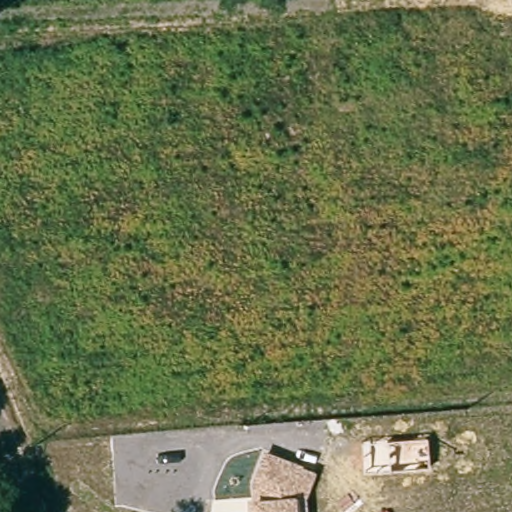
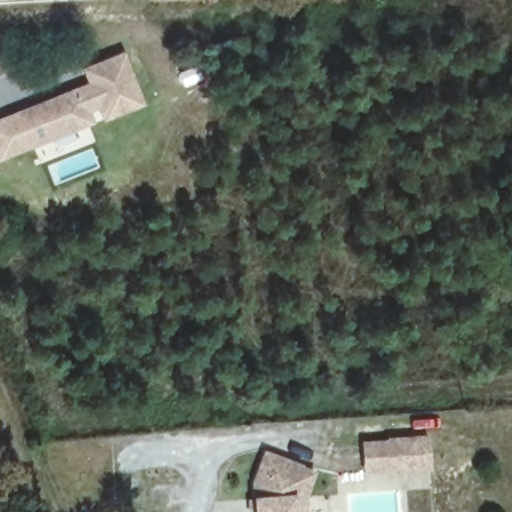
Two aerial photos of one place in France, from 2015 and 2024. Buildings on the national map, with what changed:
new [(103,120),(98,108),(89,112),(94,123),(0,159),(0,118),(88,82),(82,67),(124,51),(146,104),(103,120)]
new [(389,472),(389,471),(364,473),(362,442),(387,440),(387,437),(429,434),(432,470),(389,472)]
unchanged [(316,471),(306,501),(307,512),(247,512),(247,500),(252,499),(251,482),(264,452),(316,471)]

